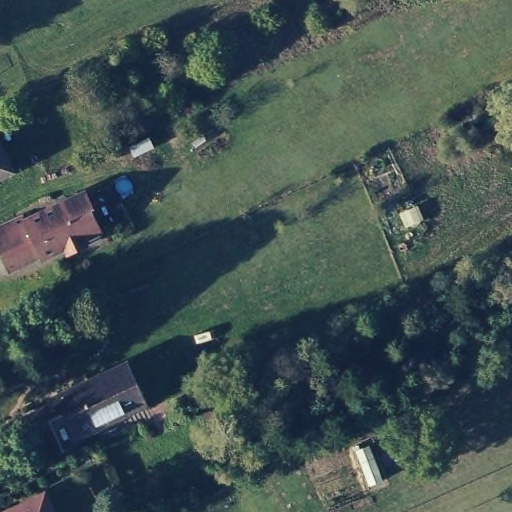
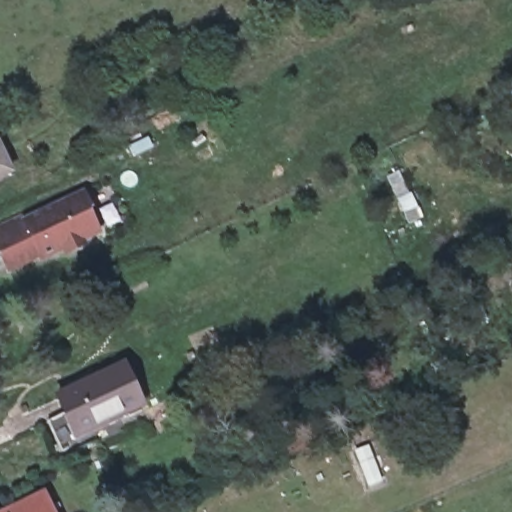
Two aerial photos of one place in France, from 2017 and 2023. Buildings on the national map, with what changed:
unchanged [(5,175),(0,178),(0,164),(5,175)]
unchanged [(73,254),(70,248),(47,260),(45,256),(13,271),(0,243),(0,230),(28,216),(29,221),(85,195),(93,212),(96,211),(105,232),(88,240),(91,246),(73,254)]
unchanged [(68,429),(53,397),(120,365),(139,404),(93,426),(72,437),(68,429)]
unchanged [(291,504),(276,512),(273,512),(264,494),(283,486),(291,504)]
unchanged [(47,512),(0,512),(0,511),(38,493),(47,512)]

